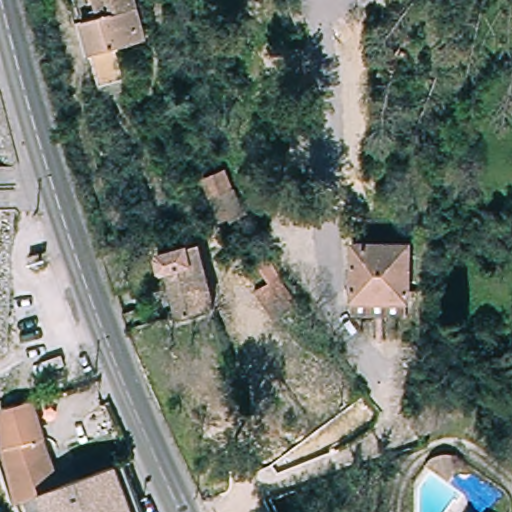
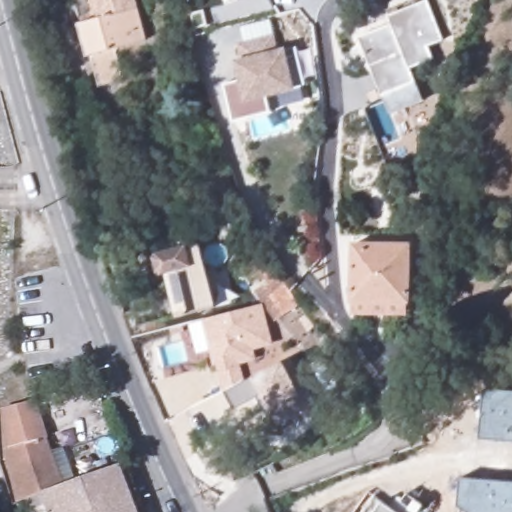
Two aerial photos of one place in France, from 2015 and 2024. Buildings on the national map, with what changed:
unchanged [(101,15),(96,0),(134,0),(136,5),(101,15)]
new [(391,25),(389,15),(427,0),(443,41),(428,47),(433,61),(411,70),(424,101),(390,114),(360,36),(391,25)]
unchanged [(101,15),(136,5),(146,42),(117,49),(125,80),(96,88),(81,20),(101,15)]
new [(275,34),(279,49),(286,47),(287,50),(296,47),(303,81),(296,83),(298,91),(268,99),(271,113),(234,121),(225,85),(240,81),(234,60),(241,57),(236,43),(275,34)]
demolished [(190,152),(211,147),(224,186),(202,192),(190,152)]
new [(248,217),(225,228),(212,199),(202,180),(224,171),(232,188),(248,217)]
demolished [(320,255),(309,255),(293,255),(293,225),(319,224),(320,255)]
unchanged [(403,245),(403,298),(357,299),(355,247),(403,245)]
unchanged [(208,305),(184,310),(173,273),(167,273),(165,256),(194,252),(208,305)]
unchanged [(109,261),(123,259),(138,305),(124,309),(109,261)]
new [(264,306),(263,303),(254,291),(270,282),(264,275),(274,268),(301,303),(275,321),(264,306)]
new [(255,350),(258,360),(242,365),(247,380),(253,376),(283,359),(300,388),(307,386),(317,403),(278,426),(260,396),(235,411),(224,392),(218,371),(216,371),(203,320),(263,303),(264,306),(274,345),(255,350)]
unchanged [(438,397),(433,377),(462,368),(465,383),(438,397)]
new [(480,439),(484,389),(512,391),(512,442),(480,439)]
unchanged [(0,407),(16,402),(40,454),(2,466),(0,452),(0,407)]
unchanged [(425,465),(420,460),(425,452),(434,448),(439,447),(443,447),(449,448),(459,455),(445,476),(425,465)]
unchanged [(13,502),(5,478),(2,466),(40,454),(53,488),(36,494),(13,502)]
unchanged [(120,463),(138,512),(43,512),(36,494),(53,488),(120,463)]
new [(466,512),(459,506),(461,477),(512,482),(512,512),(466,512)]
new [(383,501),(399,512),(354,512),(369,491),(383,501)]
demolished [(228,512),(249,500),(255,512),(228,512)]

